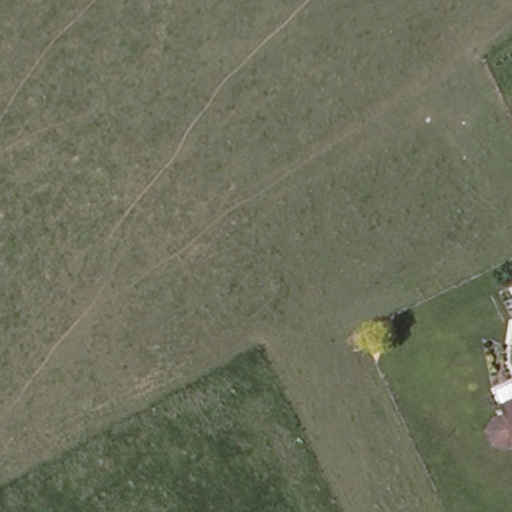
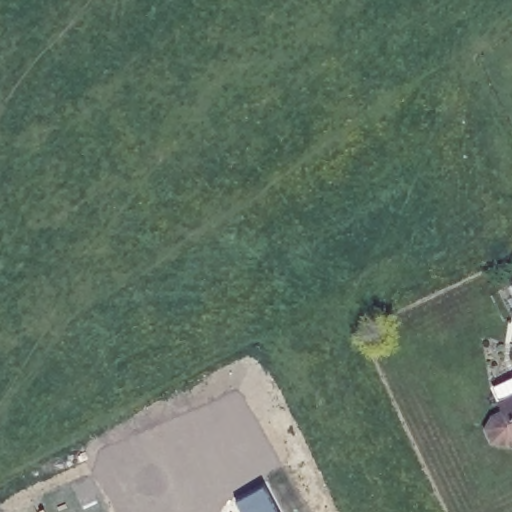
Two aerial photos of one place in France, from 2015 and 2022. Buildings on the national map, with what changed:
unchanged [(512,384),(512,448),(511,448),(499,447),(492,432),(498,421),(512,415),(500,389),(512,384)]
new [(245,512),(239,502),(266,488),(278,512),(245,512)]

